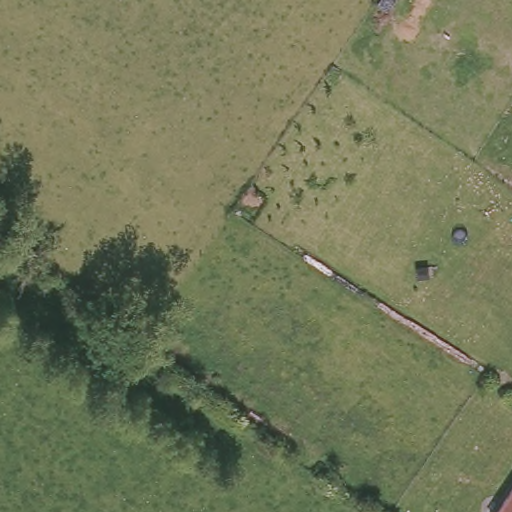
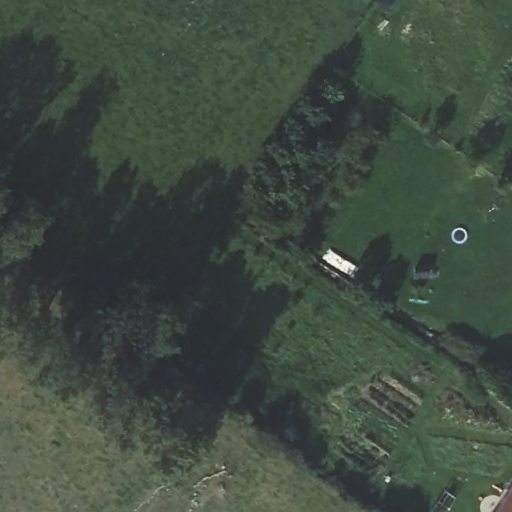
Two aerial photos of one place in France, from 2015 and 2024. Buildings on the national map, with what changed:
unchanged [(497,512),(512,491),(512,512),(497,512)]

